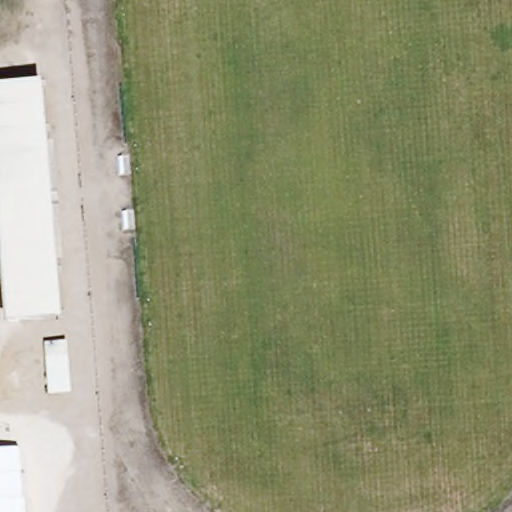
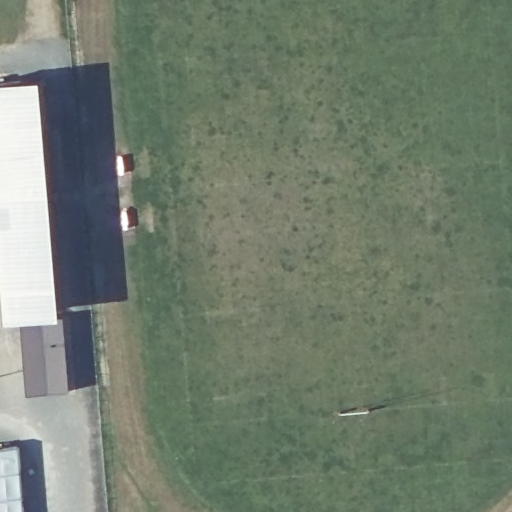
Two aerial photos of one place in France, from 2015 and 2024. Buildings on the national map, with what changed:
unchanged [(0,80),(44,76),(64,313),(10,317),(0,193),(0,80)]
new [(27,396),(21,316),(61,313),(69,392),(27,396)]
demolished [(70,389),(51,391),(46,341),(65,339),(70,389)]
new [(23,512),(0,512),(0,448),(18,447),(23,512)]

